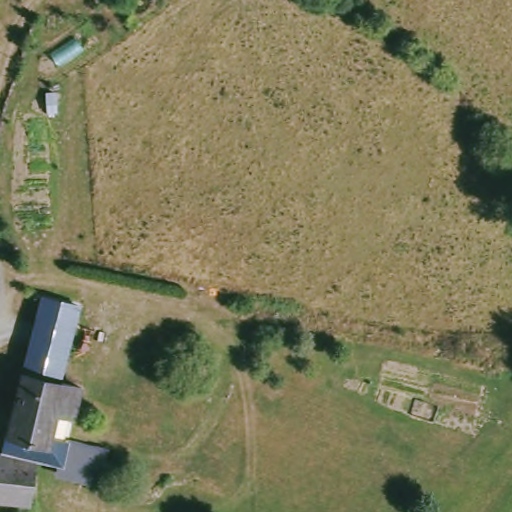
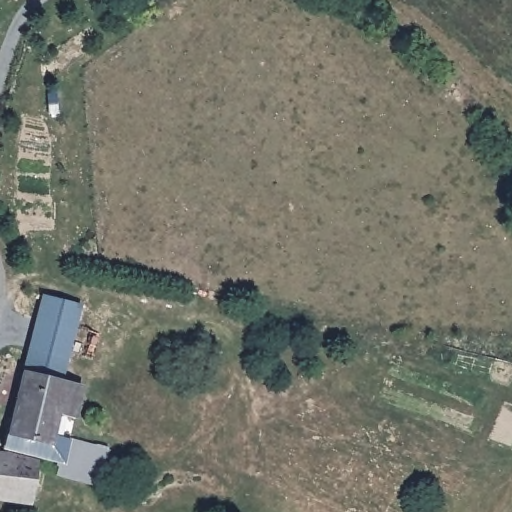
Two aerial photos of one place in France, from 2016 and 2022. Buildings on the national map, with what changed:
unchanged [(67,300),(62,319),(73,323),(61,358),(40,352),(50,319),(25,314),(31,292),(67,300)]
unchanged [(77,384),(65,436),(105,445),(97,479),(58,470),(60,460),(0,446),(13,371),(77,384)]
unchanged [(31,500),(0,497),(0,455),(35,459),(31,500)]

